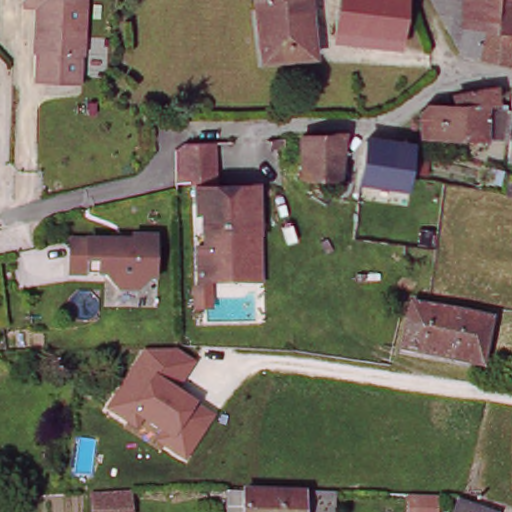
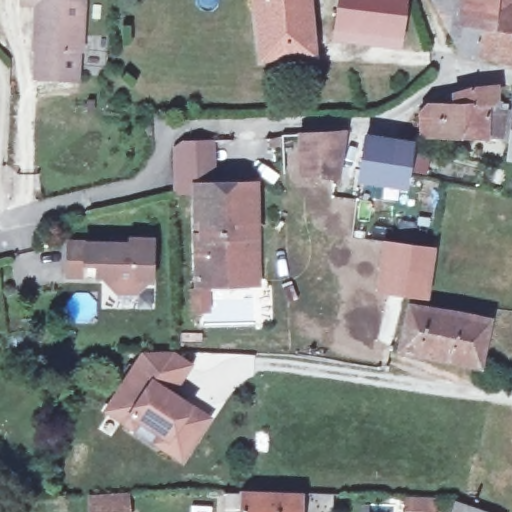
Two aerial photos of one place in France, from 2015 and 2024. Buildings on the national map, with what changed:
unchanged [(34,41),(30,40),(33,2),(17,0),(80,0),(79,48),(73,53),(73,76),(41,75),(32,75),(33,46),(34,41)]
unchanged [(256,56),(256,43),(253,0),(305,0),(309,51),(256,56)]
unchanged [(330,38),(336,0),(397,0),(390,43),(330,38)]
unchanged [(447,26),(437,6),(434,0),(467,0),(464,23),(447,26)]
unchanged [(479,56),(459,52),(459,50),(447,26),(464,23),(467,0),(500,0),(495,26),(486,25),(479,56)]
unchanged [(512,0),(512,29),(495,26),(500,0),(512,0)]
unchanged [(512,63),(479,56),(486,25),(495,26),(512,29),(512,63)]
unchanged [(493,95),(494,95),(492,105),(495,114),(508,115),(508,141),(461,138),(461,135),(461,118),(459,99),(493,95)]
unchanged [(422,134),(421,117),(440,105),(451,101),(459,99),(461,118),(461,135),(461,138),(422,134)]
unchanged [(509,99),(512,100),(512,158),(507,157),(508,141),(508,115),(509,99)]
unchanged [(402,139),(394,174),(394,178),(353,171),(359,133),(402,139)]
unchanged [(304,175),(304,157),(285,157),(284,138),(304,137),(344,136),(338,176),(304,175)]
unchanged [(178,151),(178,140),(213,141),(213,188),(196,188),(178,188),(178,184),(178,151)]
unchanged [(193,284),(194,257),(206,257),(206,237),(201,237),(201,219),(194,218),(196,188),(213,188),(214,188),(215,194),(228,194),(228,189),(253,189),(253,222),(243,223),(243,236),(253,236),(253,257),(253,286),(193,284)]
unchanged [(148,276),(141,277),(128,291),(111,291),(97,272),(71,273),(65,265),(65,242),(123,242),(127,237),(146,237),(148,276)]
new [(381,239),(437,246),(429,299),(376,292),(381,239)]
unchanged [(476,367),(455,363),(436,359),(418,356),(402,353),(409,312),(425,314),(444,317),(463,320),(484,324),(481,342),(476,367)]
unchanged [(173,351),(191,362),(176,395),(190,404),(212,417),(183,462),(153,445),(157,435),(141,424),(135,431),(104,411),(142,353),(173,351)]
unchanged [(307,495),(338,496),(338,497),(337,512),(230,512),(231,491),(254,492),(254,498),(307,500),(307,495)]
unchanged [(126,512),(91,512),(90,494),(126,492),(126,512)]
unchanged [(434,498),(434,512),(402,512),(403,498),(434,498)]
unchanged [(462,502),(484,512),(457,512),(462,502)]

